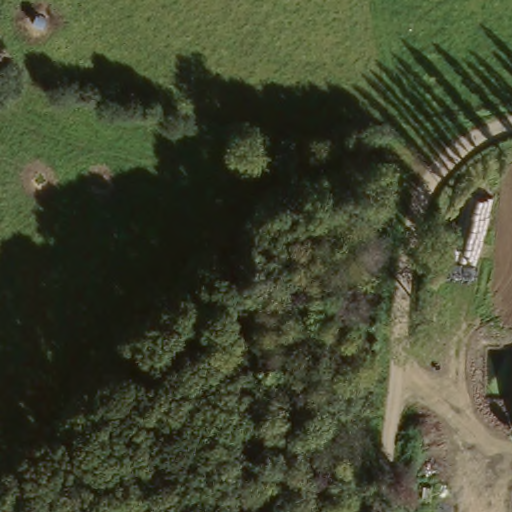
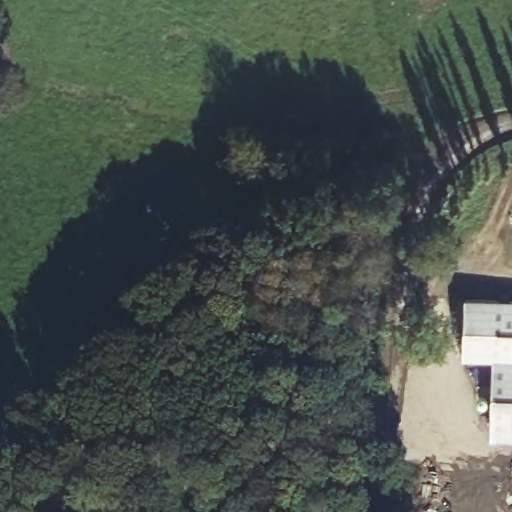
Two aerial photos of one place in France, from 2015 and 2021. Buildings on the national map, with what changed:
new [(489,439),(491,359),(461,358),(465,298),(500,299),(500,291),(509,291),(510,299),(512,299),(512,440),(489,439)]

